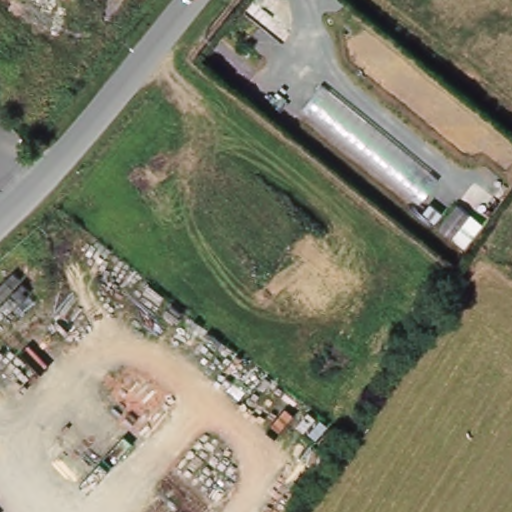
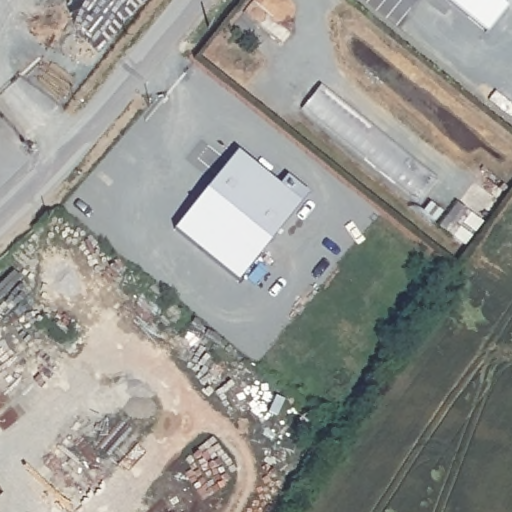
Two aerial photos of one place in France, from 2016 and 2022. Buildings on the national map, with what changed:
new [(444,0),(512,0),(512,2),(485,34),(444,0)]
demolished [(491,143),(475,166),(355,71),(375,48),(491,143)]
unchanged [(435,180),(419,204),(300,112),(317,88),(435,180)]
new [(236,152),(278,186),(286,176),(308,194),(238,280),(174,228),(236,152)]

